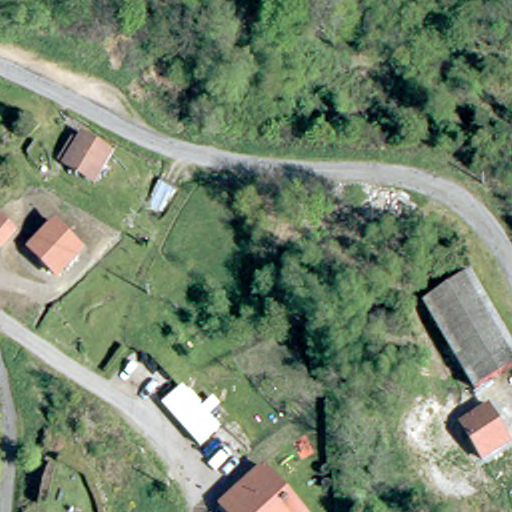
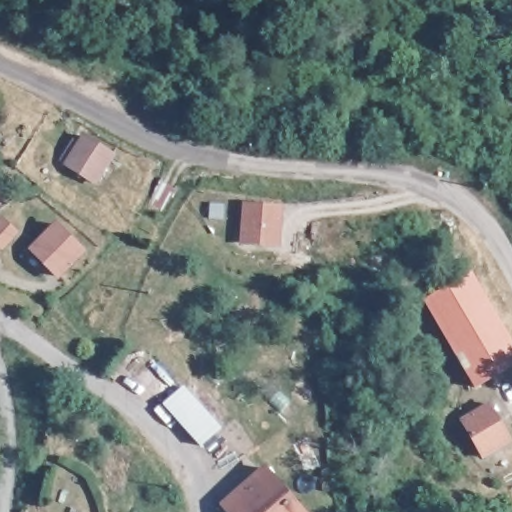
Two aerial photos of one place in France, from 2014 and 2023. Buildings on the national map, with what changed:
unchanged [(86,150),(91,143),(119,162),(100,190),(72,171),(68,168),(74,159),(82,148),(86,150)]
new [(284,205),(280,247),(237,244),(242,202),(284,205)]
unchanged [(87,254),(57,280),(28,246),(56,221),(87,254)]
unchanged [(512,345),(512,368),(476,391),(429,314),(424,305),(471,276),(474,281),(512,345)]
unchanged [(180,392),(222,440),(204,456),(163,408),(180,392)]
unchanged [(512,439),(512,442),(482,459),(459,420),(489,401),(512,439)]
unchanged [(270,474),(303,512),(227,512),(225,510),(270,474)]

